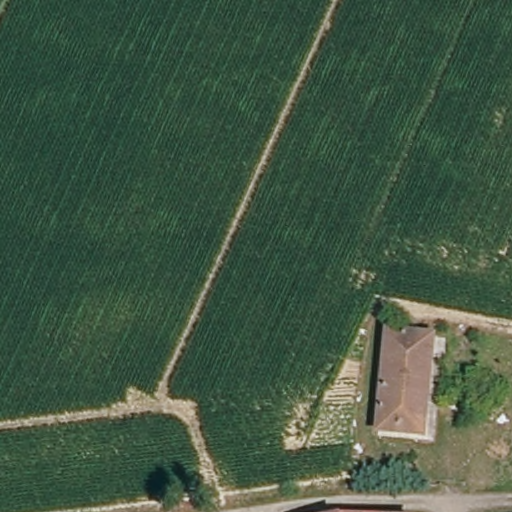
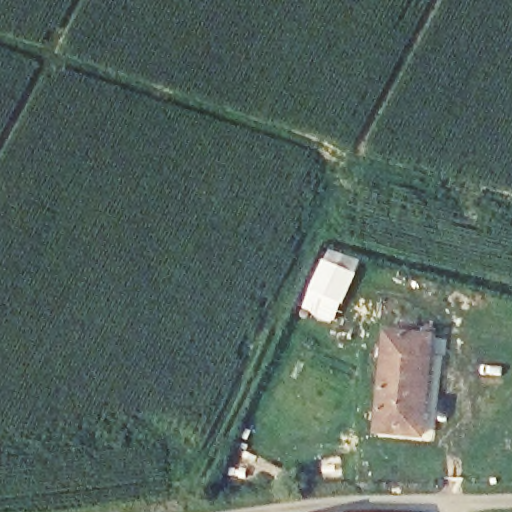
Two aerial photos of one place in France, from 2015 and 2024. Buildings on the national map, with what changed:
new [(357,275),(335,322),(302,307),(325,260),(357,275)]
unchanged [(416,438),(372,425),(393,330),(440,342),(416,438)]

